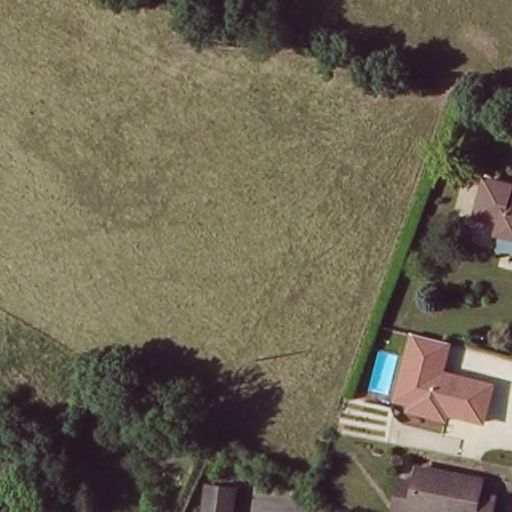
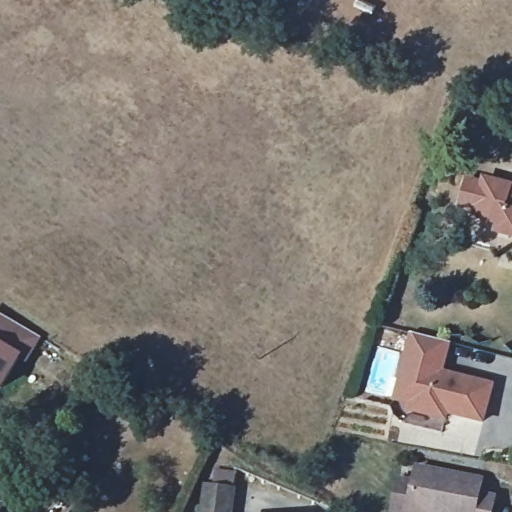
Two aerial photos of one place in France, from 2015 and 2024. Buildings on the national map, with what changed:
unchanged [(502,233),(504,222),(478,215),(486,181),(512,187),(512,200),(512,202),(512,236),(502,233)]
new [(27,363),(20,360),(3,391),(0,390),(0,314),(41,336),(27,363)]
unchanged [(486,425),(449,417),(448,422),(406,411),(408,405),(395,401),(411,334),(453,343),(445,371),(496,383),(486,425)]
unchanged [(1,491),(0,491),(0,453),(18,462),(1,491)]
unchanged [(480,490),(475,505),(494,510),(493,512),(389,512),(397,482),(413,488),(417,472),(480,490)]
unchanged [(237,487),(232,512),(197,512),(204,480),(237,487)]

